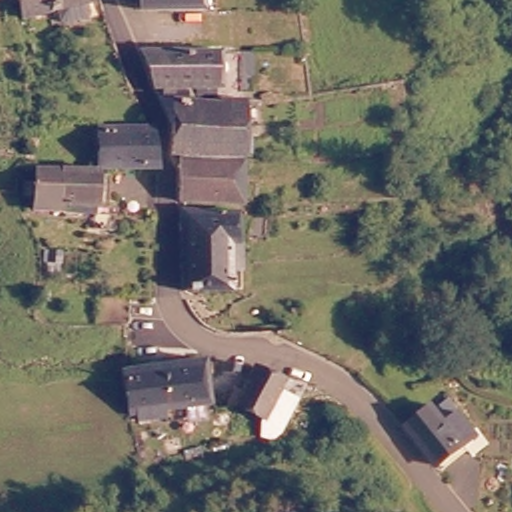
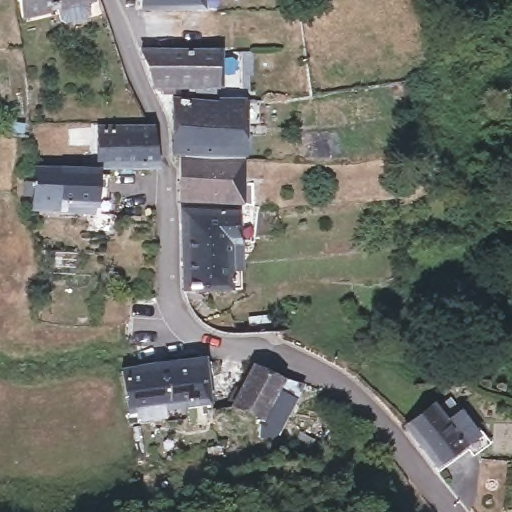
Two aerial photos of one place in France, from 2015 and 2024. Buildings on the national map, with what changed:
unchanged [(26,0),(99,0),(100,2),(30,18),(26,0)]
unchanged [(207,0),(206,5),(145,7),(145,0),(207,0)]
unchanged [(169,96),(169,93),(164,92),(145,48),(226,50),(226,94),(210,94),(210,99),(202,98),(201,91),(182,91),(182,97),(169,96)]
unchanged [(178,157),(182,97),(182,91),(201,91),(202,98),(210,99),(233,100),(234,95),(260,102),(250,157),(182,157),(178,157)]
unchanged [(98,161),(97,122),(154,124),(160,162),(98,161)]
unchanged [(185,201),(182,157),(250,157),(250,161),(250,204),(188,201),(185,201)]
unchanged [(35,164),(98,164),(99,169),(110,169),(110,183),(110,199),(115,200),(115,208),(34,207),(35,164)]
unchanged [(189,212),(246,213),(247,291),(190,291),(189,212)]
unchanged [(123,323),(106,323),(107,292),(141,294),(141,326),(123,323)]
unchanged [(214,357),(220,401),(206,402),(147,411),(140,412),(133,371),(139,369),(214,357)]
unchanged [(257,363),(285,377),(300,387),(295,396),(298,399),(281,426),(265,416),(237,402),(257,363)]
unchanged [(410,429),(436,407),(448,397),(478,433),(440,466),(410,429)]

